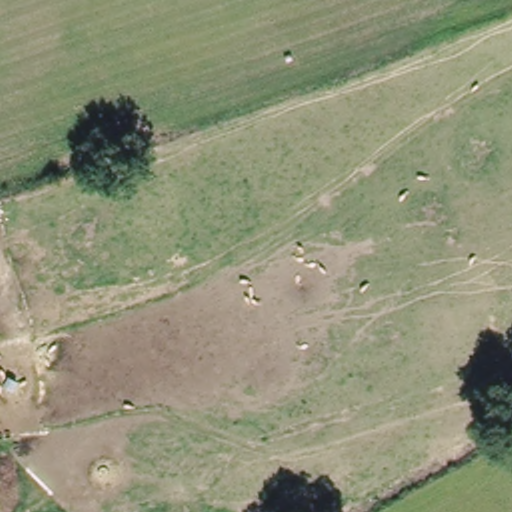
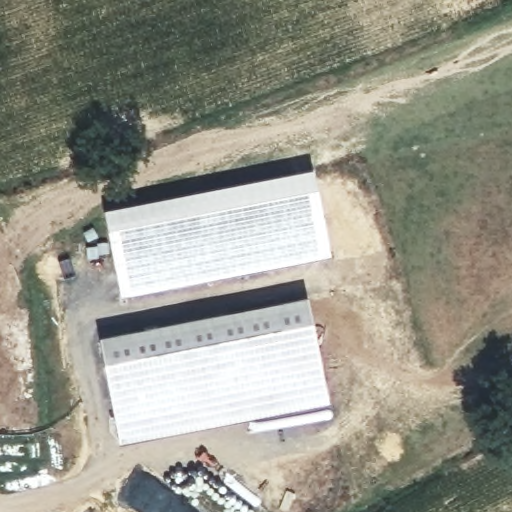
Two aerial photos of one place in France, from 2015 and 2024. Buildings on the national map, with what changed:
new [(313,169),(332,257),(160,292),(120,299),(110,254),(103,210),(313,169)]
new [(324,394),(117,434),(101,349),(308,310),(324,394)]

